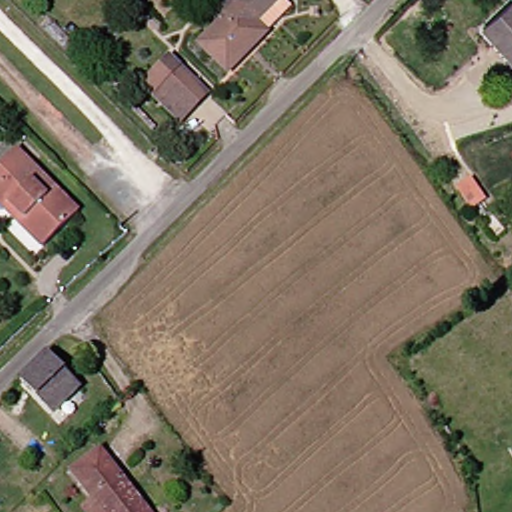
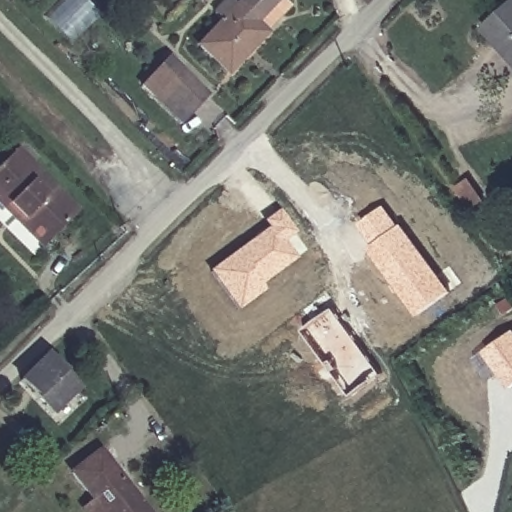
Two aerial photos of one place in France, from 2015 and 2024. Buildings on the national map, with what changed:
unchanged [(218,66),(191,39),(230,0),(264,0),(247,16),(257,26),(218,66)]
unchanged [(509,0),(512,0),(512,60),(480,26),(509,0)]
unchanged [(136,87),(165,58),(200,93),(184,111),(172,122),(149,99),(136,87)]
unchanged [(0,210),(0,162),(12,150),(74,211),(44,240),(37,246),(6,215),(0,210)]
new [(368,249),(374,245),(359,224),(385,206),(400,227),(402,224),(451,292),(419,316),(368,249)]
new [(208,273),(268,229),(263,221),(279,210),(296,233),(285,242),(297,259),(260,285),(265,291),(236,311),(208,273)]
new [(301,331),(331,310),(379,375),(349,396),(301,331)]
new [(485,351),(512,331),(512,388),(511,388),(485,351)]
unchanged [(75,390),(50,411),(19,379),(43,354),(75,390)]
unchanged [(75,504),(86,496),(66,469),(95,449),(124,488),(135,480),(152,502),(141,511),(142,512),(81,512),(75,504)]

